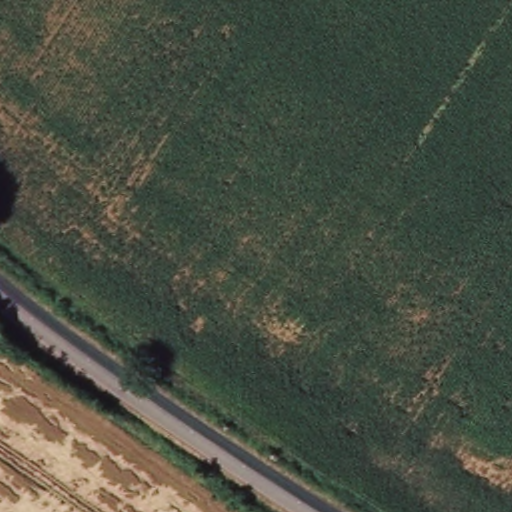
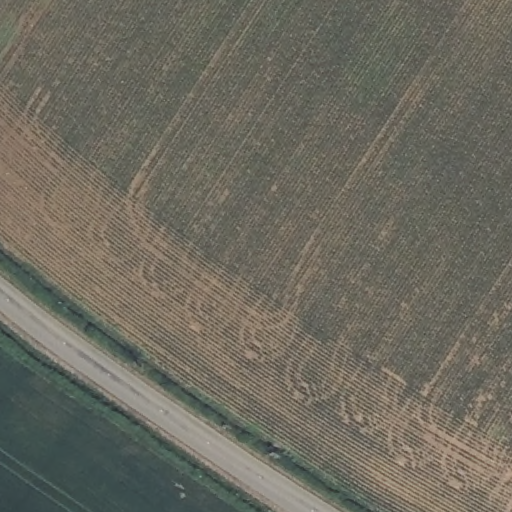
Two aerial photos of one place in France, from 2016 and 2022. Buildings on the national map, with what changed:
[]

